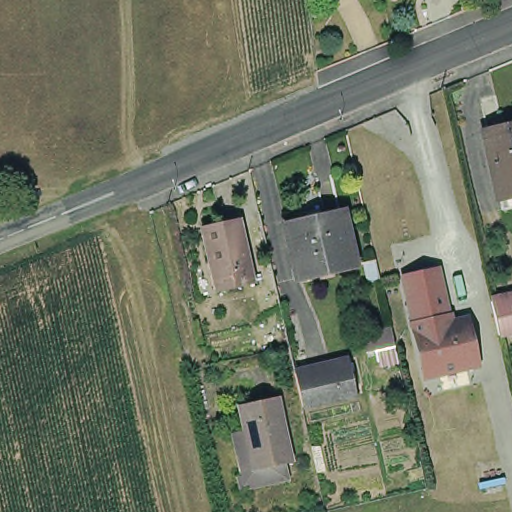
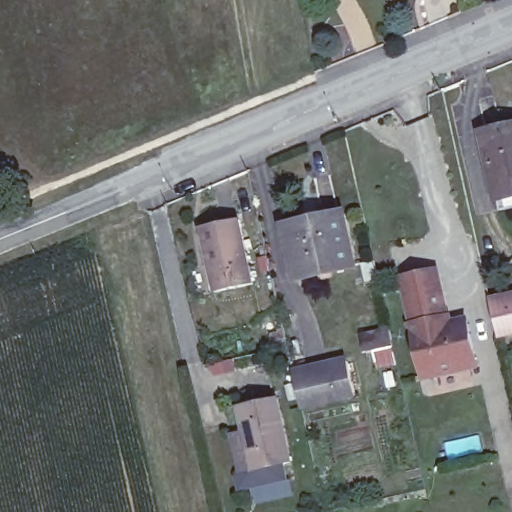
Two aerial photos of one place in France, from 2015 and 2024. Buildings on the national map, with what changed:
unchanged [(494,204),(490,190),(476,125),(496,121),(512,118),(512,201),(494,204)]
unchanged [(333,209),(345,263),(291,274),(279,222),(333,209)]
unchanged [(237,218),(252,282),(214,291),(200,227),(237,218)]
unchanged [(377,283),(365,285),(360,263),(372,260),(377,283)]
unchanged [(403,284),(440,275),(449,322),(414,330),(403,284)]
unchanged [(495,335),(487,302),(512,296),(512,332),(495,335)]
unchanged [(449,322),(450,324),(457,328),(470,325),(480,371),(426,383),(414,330),(449,322)]
unchanged [(365,353),(361,335),(388,330),(392,348),(365,353)]
unchanged [(346,363),(354,396),(299,408),(292,374),(346,363)]
unchanged [(255,488),(239,492),(235,479),(240,478),(229,436),(242,432),(236,407),(275,399),(290,464),(282,466),(285,481),(255,488)]

